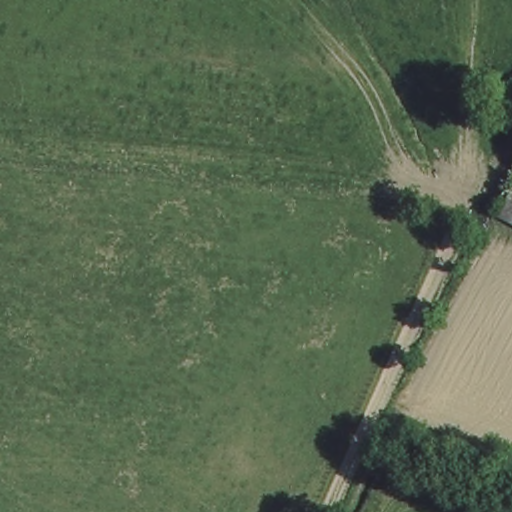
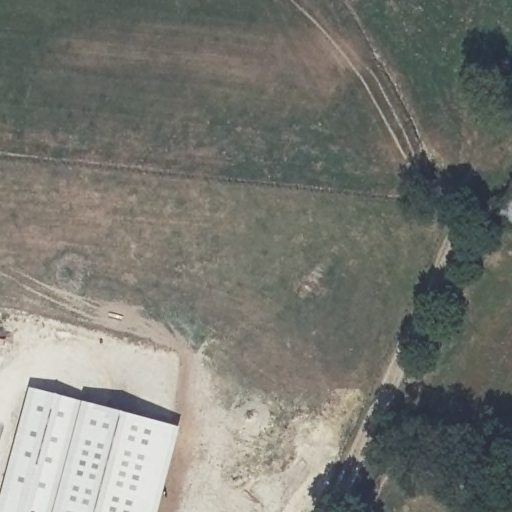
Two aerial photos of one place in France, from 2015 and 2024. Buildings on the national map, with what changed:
unchanged [(498,215),(512,185),(512,223),(498,215)]
new [(86,403),(183,428),(161,512),(0,512),(0,511),(32,389),(86,403)]

